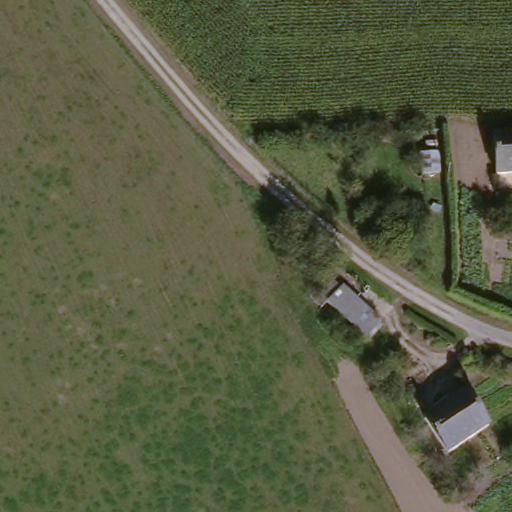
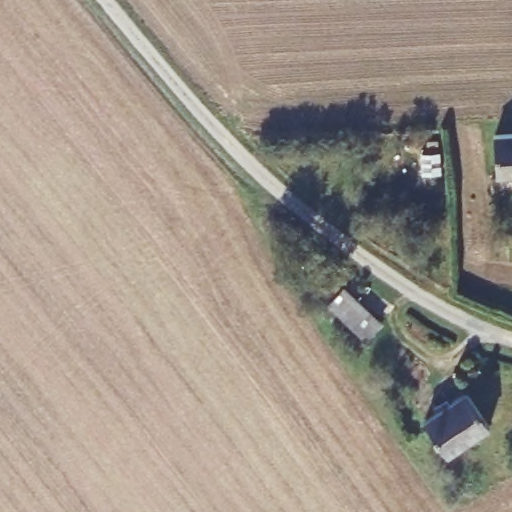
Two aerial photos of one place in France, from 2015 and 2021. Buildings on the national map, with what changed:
unchanged [(512,132),(512,171),(504,171),(501,133),(512,132)]
unchanged [(335,284),(372,319),(357,334),(339,318),(321,299),(335,284)]
unchanged [(469,393),(491,425),(448,455),(428,422),(469,393)]

